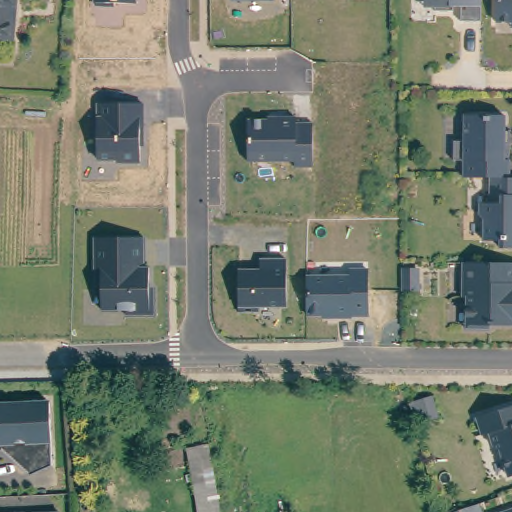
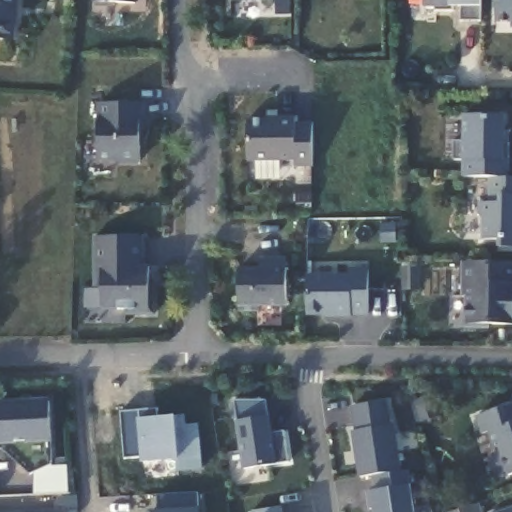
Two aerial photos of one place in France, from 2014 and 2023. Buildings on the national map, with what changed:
unchanged [(0,38),(0,0),(11,0),(8,39),(0,38)]
unchanged [(93,0),(136,0),(135,3),(114,2),(114,7),(93,7),(92,2),(93,0)]
unchanged [(230,1),(230,0),(274,0),(230,1)]
unchanged [(407,0),(437,0),(437,5),(418,5),(418,1),(407,1),(407,0)]
unchanged [(464,15),(444,15),(444,0),(464,0),(464,15)]
unchanged [(506,16),(479,17),(479,0),(512,0),(512,21),(506,21),(506,16)]
unchanged [(139,101),(139,162),(115,163),(115,159),(95,159),(97,117),(96,102),(139,101)]
unchanged [(436,155),(436,136),(447,136),(447,110),(488,110),(489,137),(493,137),(493,172),(474,172),(447,172),(447,155),(436,155)]
unchanged [(295,124),(314,124),(314,169),(295,169),(295,160),(245,160),(246,120),(261,120),(261,116),(295,117),(295,124)]
unchanged [(512,190),(512,215),(508,215),(508,242),(484,242),(484,235),(467,235),(468,215),(463,210),(464,197),(474,197),(474,172),(493,172),(510,172),(509,190),(512,190)]
unchanged [(144,237),(143,265),(148,265),(148,287),(155,287),(155,290),(155,316),(126,316),(125,311),(99,310),(99,287),(95,288),(95,236),(144,237)]
unchanged [(505,288),(499,288),(499,321),(472,320),(472,324),(450,323),(451,292),(446,292),(447,257),(505,258),(505,288)]
unchanged [(259,267),(260,260),(286,259),(286,306),(259,306),(258,311),(237,312),(237,307),(236,268),(259,267)]
unchanged [(348,275),(348,267),(369,268),(369,317),(320,317),(320,314),(304,315),(305,275),(348,275)]
unchanged [(485,446),(481,443),(474,429),(467,431),(461,413),(504,398),(511,415),(512,415),(512,466),(494,472),(485,446)]
new [(266,402),(271,432),(283,431),(289,464),(242,470),(230,401),(266,402)]
unchanged [(0,446),(0,403),(47,402),(51,463),(28,473),(3,452),(0,446)]
new [(384,402),(388,427),(391,426),(398,472),(358,478),(351,432),(355,432),(351,407),(384,402)]
new [(200,470),(177,471),(175,460),(142,463),(141,456),(122,457),(118,412),(157,408),(158,418),(181,416),(183,426),(197,426),(200,470)]
new [(371,476),(398,472),(408,471),(410,487),(414,512),(374,512),(372,491),(371,476)]
new [(200,512),(149,512),(148,511),(159,511),(157,497),(198,495),(200,511),(200,512)]
unchanged [(512,512),(474,512),(512,500),(512,512)]
unchanged [(453,504),(457,512),(436,512),(435,510),(453,504)]
new [(280,512),(252,512),(279,507),(280,512)]
unchanged [(58,512),(23,512),(57,511),(58,512)]

